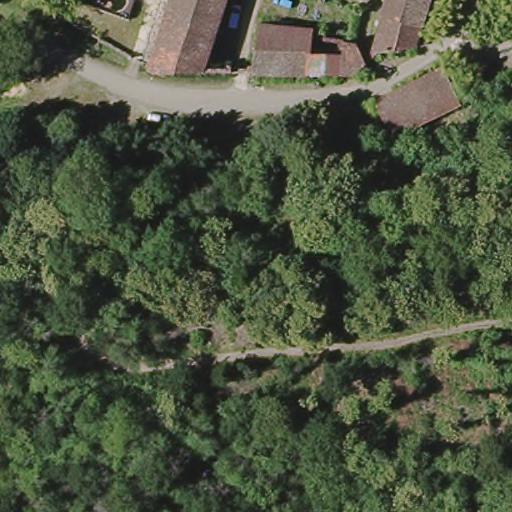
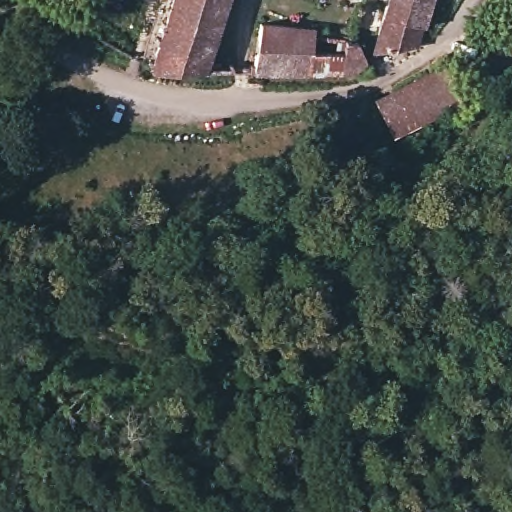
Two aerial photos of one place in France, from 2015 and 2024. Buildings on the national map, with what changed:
unchanged [(215,37),(165,21),(174,0),(228,0),(215,37)]
unchanged [(418,47),(386,52),(382,55),(375,54),(390,0),(433,0),(418,47)]
unchanged [(165,21),(215,37),(205,70),(150,68),(165,21)]
unchanged [(264,25),(317,31),(317,37),(328,39),(327,55),(348,56),(349,44),(360,44),(370,64),(357,72),(257,70),(264,25)]
unchanged [(469,108),(402,139),(386,100),(453,70),(469,108)]

